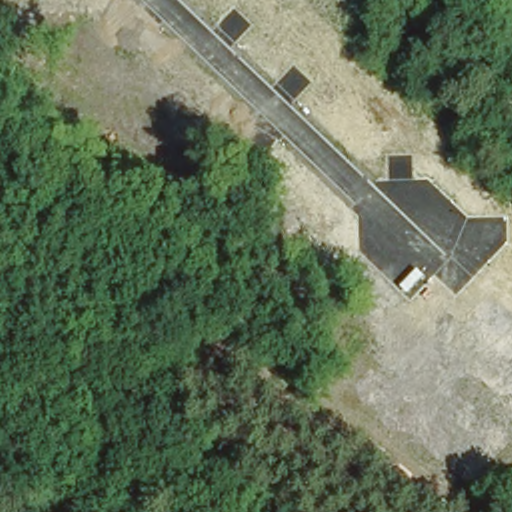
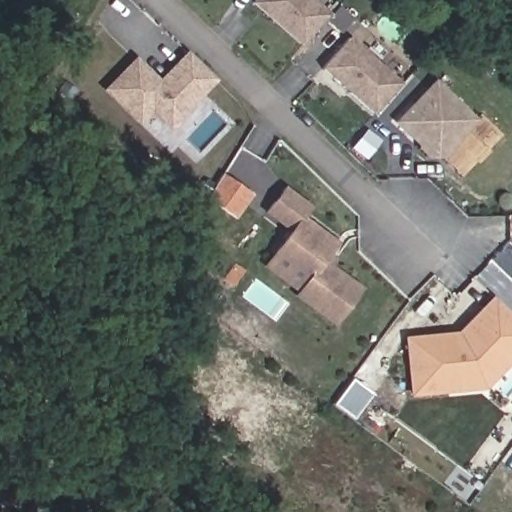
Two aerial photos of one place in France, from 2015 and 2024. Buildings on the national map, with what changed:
new [(299,47),(251,3),(254,0),(312,0),(328,15),(299,47)]
new [(372,115),(319,69),(346,36),(401,84),(372,115)]
new [(169,129),(151,112),(137,126),(101,90),(133,56),(158,80),(185,51),(216,80),(169,129)]
new [(457,140),(455,142),(457,145),(443,159),(427,159),(416,147),(418,145),(392,121),(433,79),(476,120),(457,140)]
new [(225,177),(254,196),(239,220),(210,201),(225,177)]
new [(303,217),(337,244),(329,254),(336,259),(332,266),(362,289),(334,327),(293,296),(297,292),(261,266),(287,232),(263,213),(282,186),(310,207),(303,217)]
new [(484,390),(410,397),(404,336),(457,331),(491,296),(512,316),(512,361),(484,390)]

